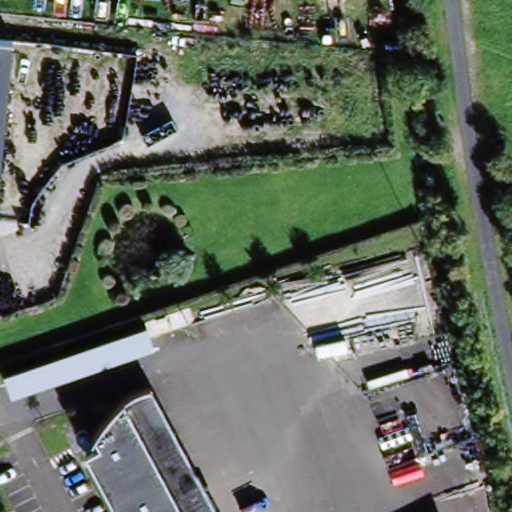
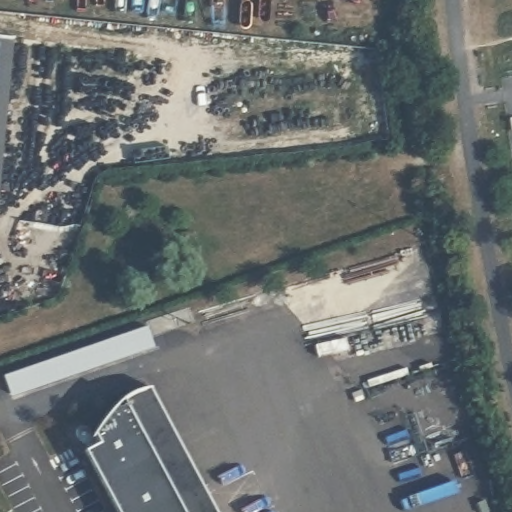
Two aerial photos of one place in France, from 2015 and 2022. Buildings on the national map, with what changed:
unchanged [(10,36),(0,135),(0,35),(10,36)]
unchanged [(215,512),(114,512),(77,446),(97,436),(88,424),(143,383),(198,481),(215,512)]

